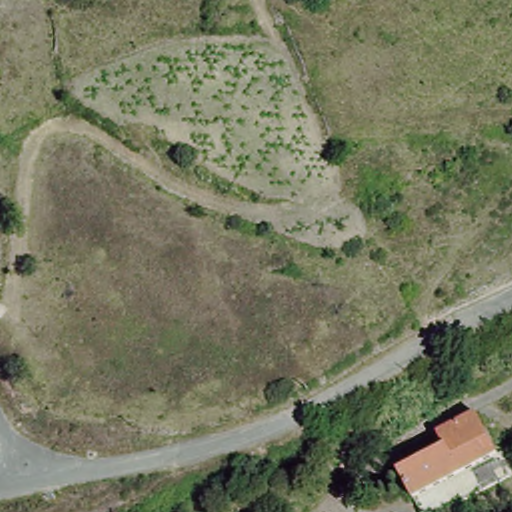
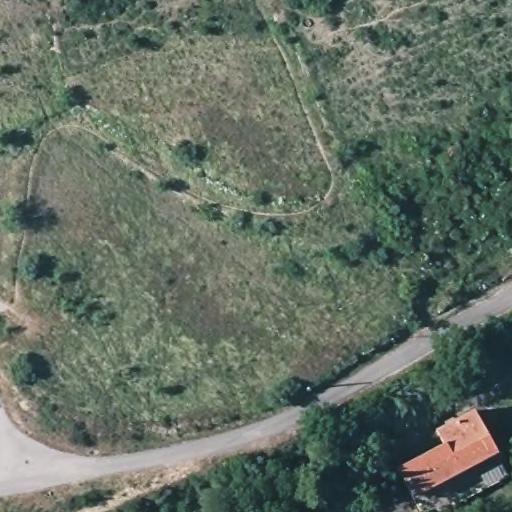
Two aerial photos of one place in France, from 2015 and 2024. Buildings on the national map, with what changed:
unchanged [(498,461),(413,504),(387,450),(428,429),(421,414),(435,407),(466,402),(498,461)]
unchanged [(278,459),(282,473),(268,478),(263,463),(278,459)]

